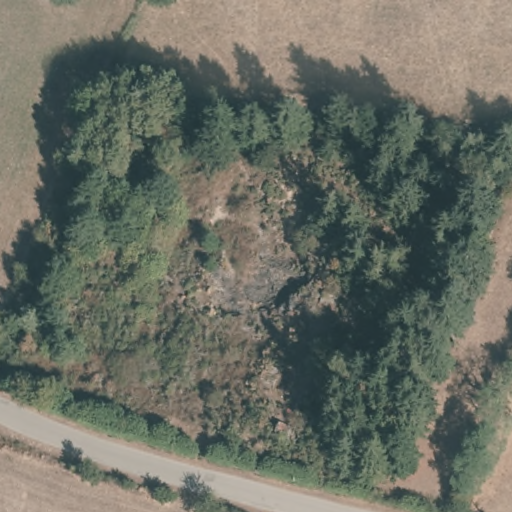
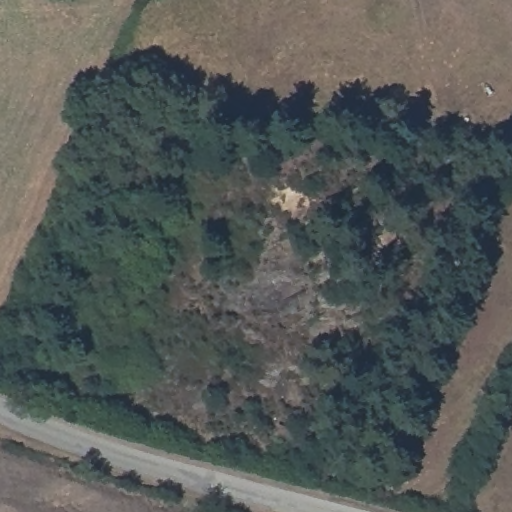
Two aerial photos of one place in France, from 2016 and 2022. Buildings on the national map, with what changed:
[]

